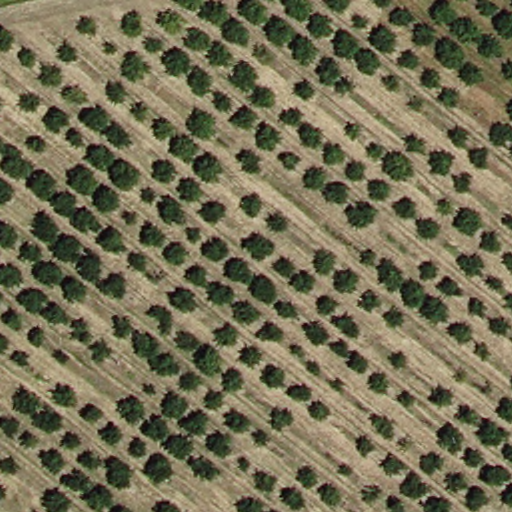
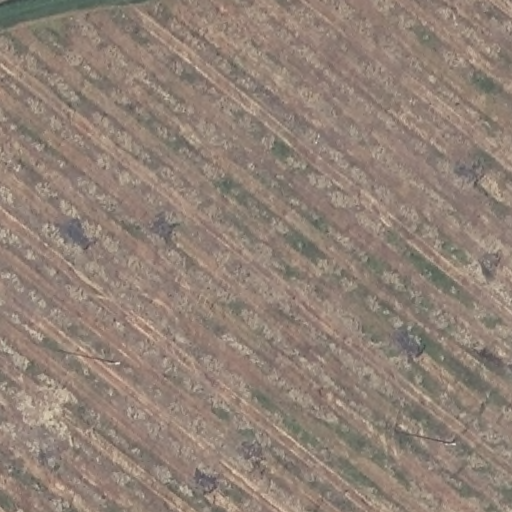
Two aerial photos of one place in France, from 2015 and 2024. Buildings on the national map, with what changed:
[]

